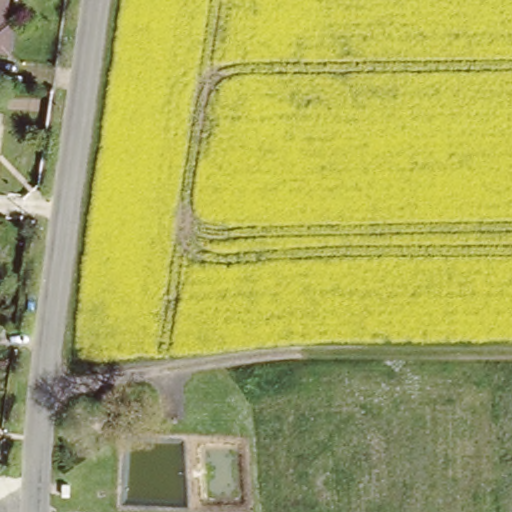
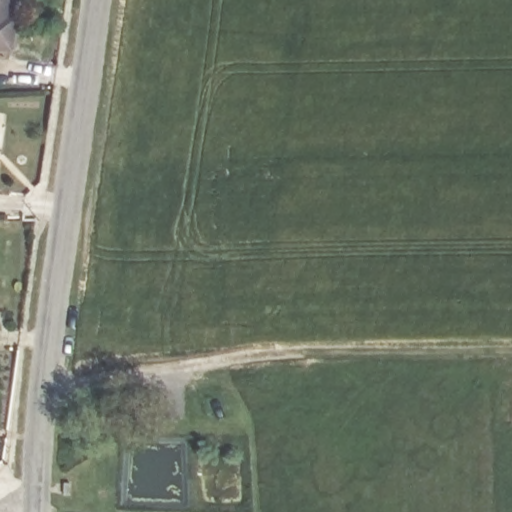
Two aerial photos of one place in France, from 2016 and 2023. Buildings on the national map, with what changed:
unchanged [(3,9),(11,10),(8,40),(0,39),(0,0),(4,0),(3,9)]

